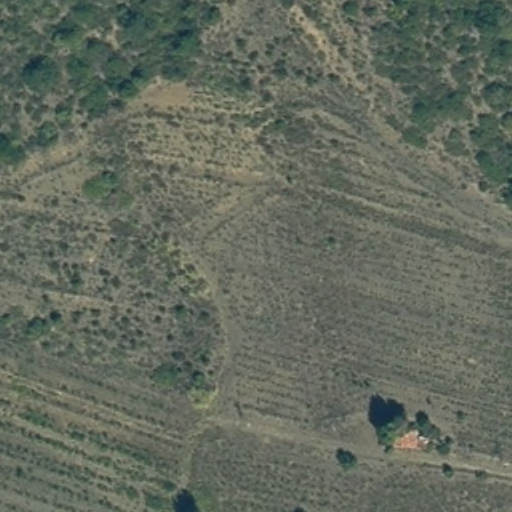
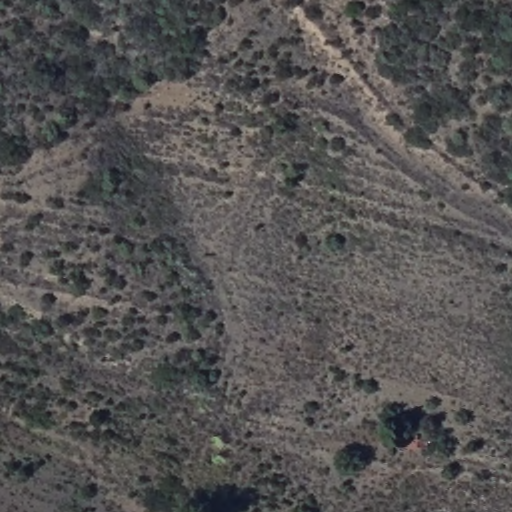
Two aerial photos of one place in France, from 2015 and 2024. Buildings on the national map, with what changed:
unchanged [(399,423),(425,432),(422,448),(410,446),(397,444),(397,443),(399,423)]

